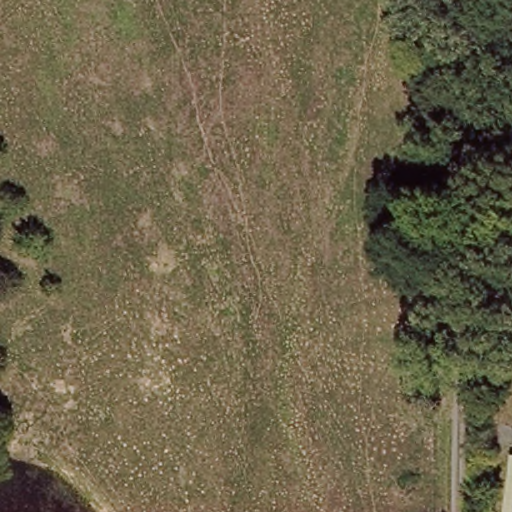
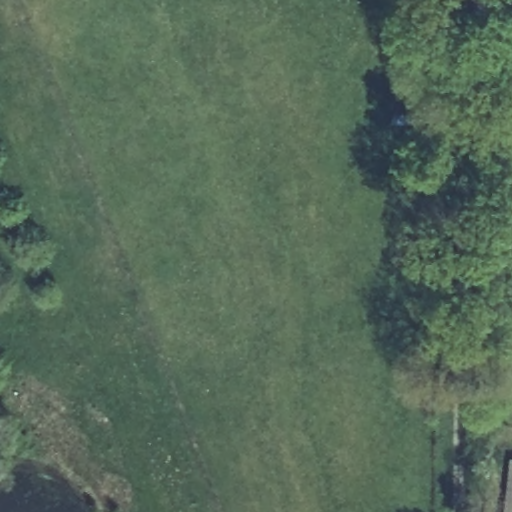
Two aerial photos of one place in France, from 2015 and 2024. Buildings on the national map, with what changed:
[]

